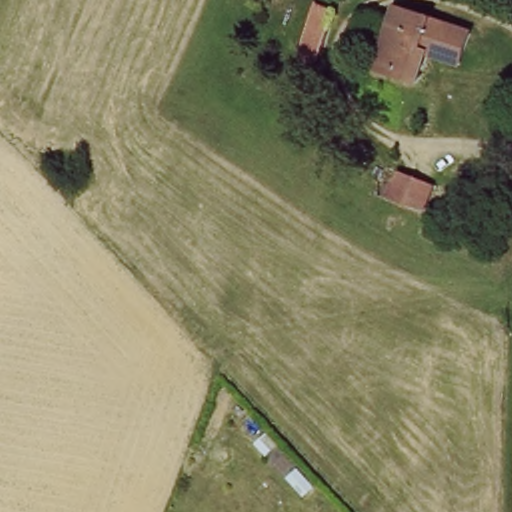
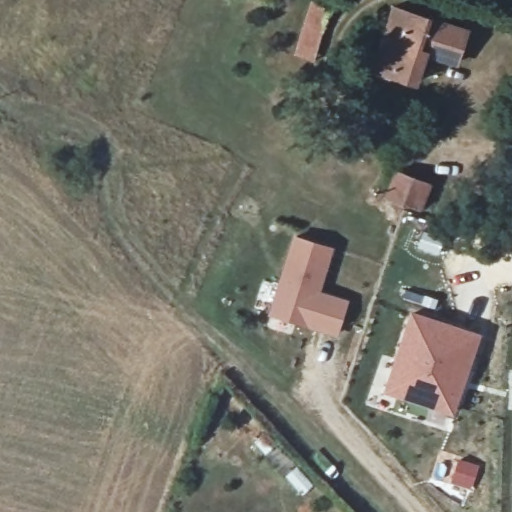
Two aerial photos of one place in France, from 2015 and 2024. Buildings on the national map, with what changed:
unchanged [(335,9),(317,64),(293,56),(310,0),(335,9)]
unchanged [(452,59),(421,50),(411,80),(388,73),(369,67),(386,4),(395,6),(462,27),(452,59)]
unchanged [(385,199),(395,172),(424,183),(415,209),(385,199)]
new [(330,251),(316,291),(345,301),(333,340),(268,318),(292,236),(330,251)]
new [(480,336),(453,414),(383,390),(411,311),(480,336)]

